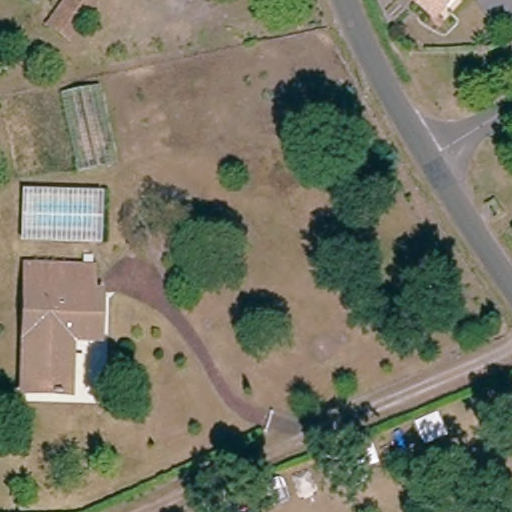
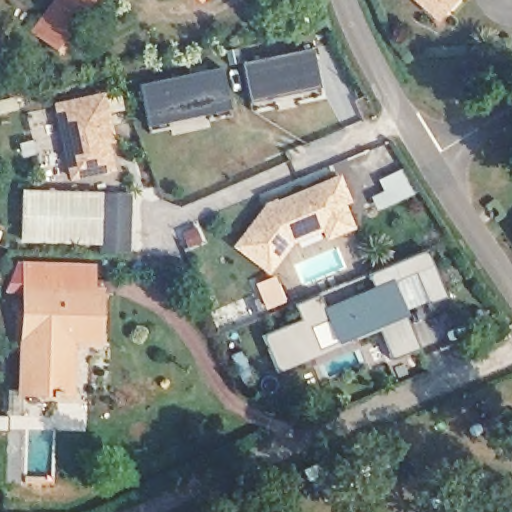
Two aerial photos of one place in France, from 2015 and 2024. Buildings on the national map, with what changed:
unchanged [(45,25),(62,0),(92,0),(65,38),(45,25)]
unchanged [(201,0),(224,0),(210,17),(201,0)]
unchanged [(409,0),(447,0),(431,19),(409,0)]
new [(311,47),(320,90),(250,104),(240,61),(311,47)]
new [(150,125),(147,115),(140,82),(223,65),(230,98),(232,107),(150,125)]
unchanged [(118,165),(76,174),(57,93),(100,85),(118,165)]
new [(406,167),(417,191),(393,203),(381,180),(406,167)]
new [(267,205),(278,200),(341,175),(351,197),(345,200),(355,224),(331,235),(327,225),(293,240),(271,269),(238,244),(267,205)]
new [(131,192),(130,253),(100,252),(105,192),(131,192)]
unchanged [(21,244),(24,196),(98,199),(97,246),(21,244)]
new [(323,307),(375,287),(369,275),(427,252),(444,297),(427,305),(415,274),(395,282),(407,315),(405,316),(417,349),(392,360),(380,331),(278,371),(264,335),(302,320),(296,303),(319,293),(323,307)]
unchanged [(95,269),(95,290),(101,290),(99,347),(71,346),(70,400),(16,398),(21,266),(95,269)]

